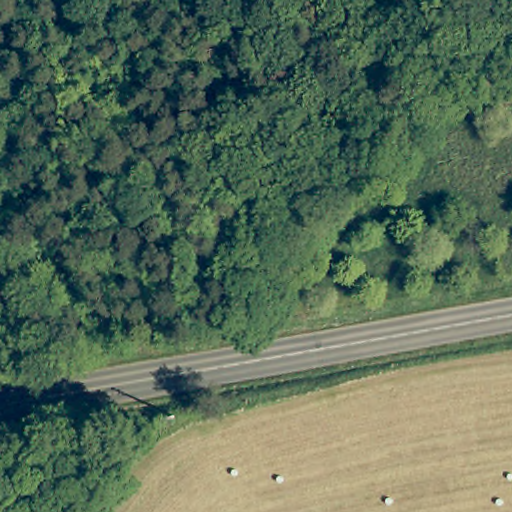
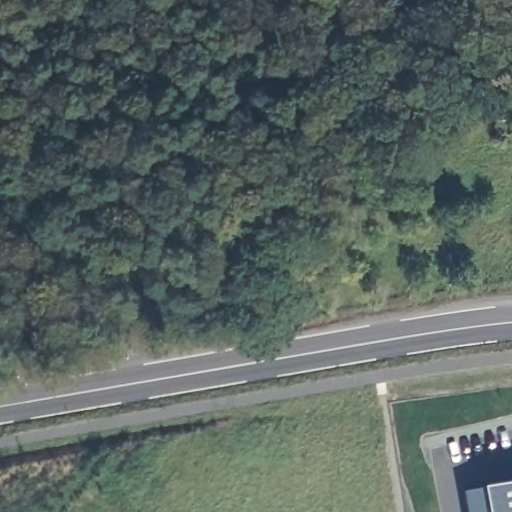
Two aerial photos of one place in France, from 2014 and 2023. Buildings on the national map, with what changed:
new [(467,512),(464,493),(485,489),(512,485),(512,512),(467,512)]

